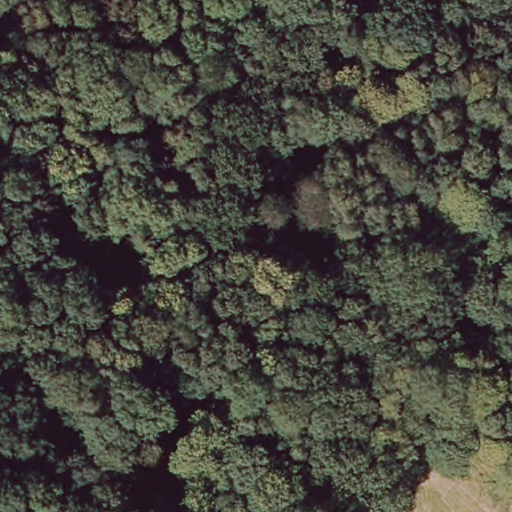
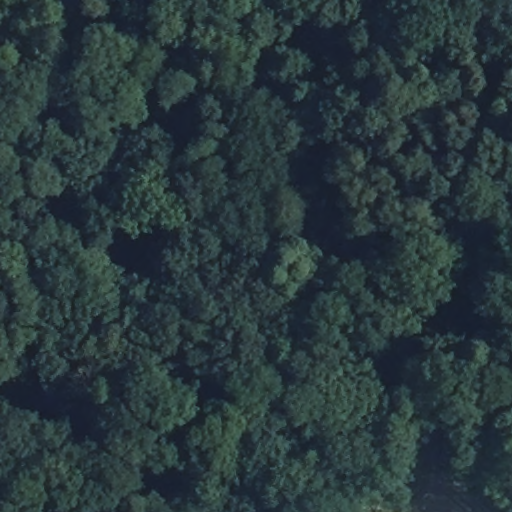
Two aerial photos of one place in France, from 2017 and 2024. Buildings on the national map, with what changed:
unchanged [(217,40),(244,0),(436,0),(436,53),(280,53),(217,40)]

